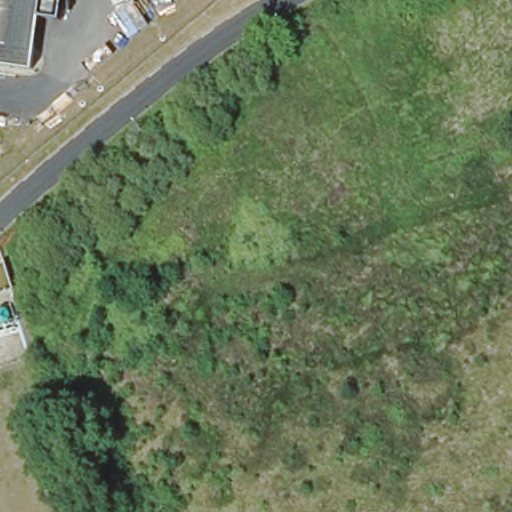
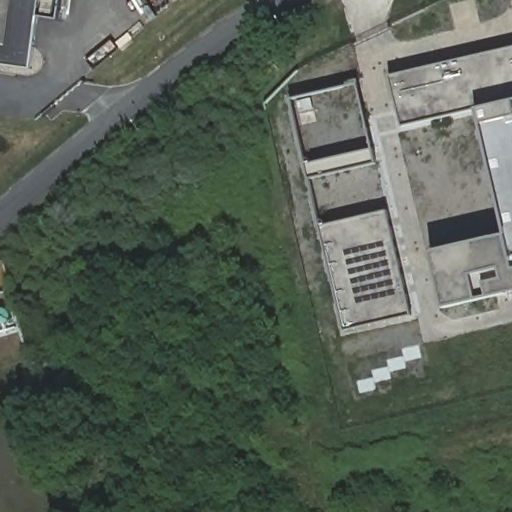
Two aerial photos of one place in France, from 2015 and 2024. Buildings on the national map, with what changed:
unchanged [(20,81),(0,78),(0,0),(31,0),(27,28),(20,81)]
new [(404,126),(392,76),(512,48),(512,292),(443,307),(430,250),(490,233),(492,237),(507,233),(476,110),(404,126)]
new [(310,180),(291,99),(358,83),(377,163),(310,180)]
new [(412,316),(346,332),(322,225),(389,210),(412,316)]

